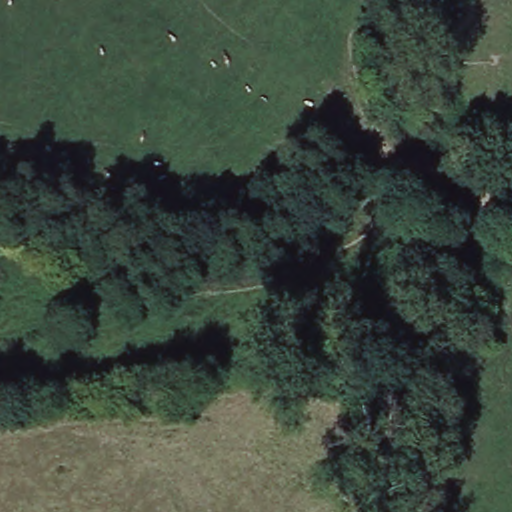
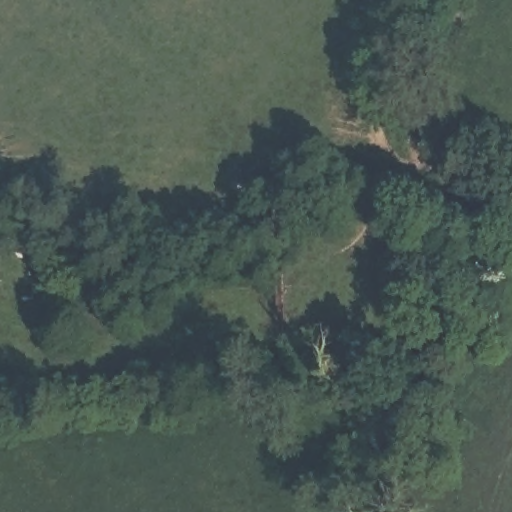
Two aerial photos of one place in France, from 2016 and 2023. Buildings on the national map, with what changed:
[]

